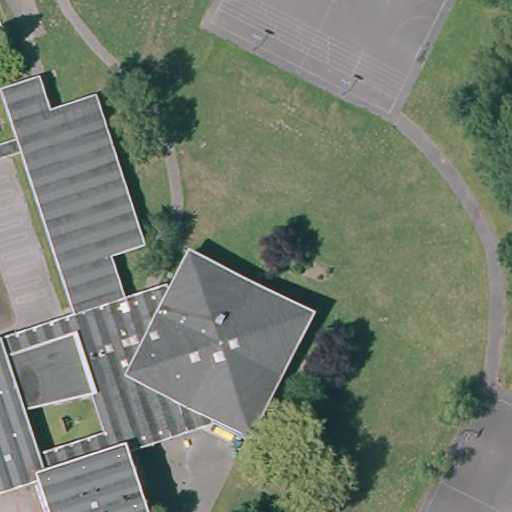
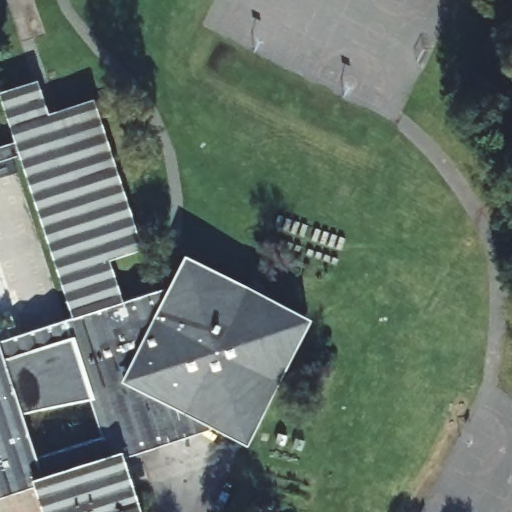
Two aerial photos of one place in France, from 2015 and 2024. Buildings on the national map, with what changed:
unchanged [(13,141),(0,101),(34,91),(45,125),(93,109),(134,246),(101,256),(115,305),(156,292),(159,301),(168,298),(187,256),(318,309),(251,435),(214,416),(203,419),(204,423),(125,448),(144,512),(49,512),(38,477),(0,489),(0,342),(71,320),(19,156),(0,162),(0,146),(13,141)]

